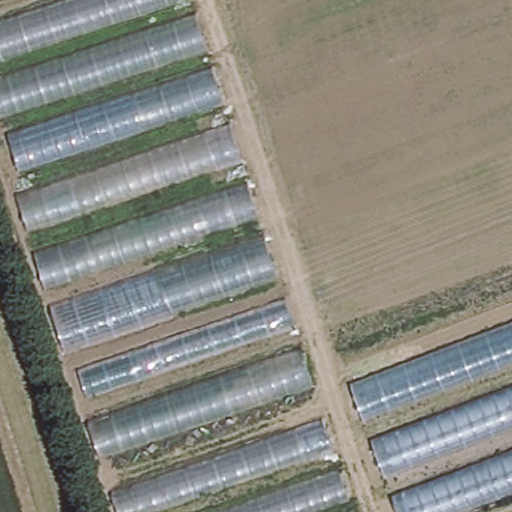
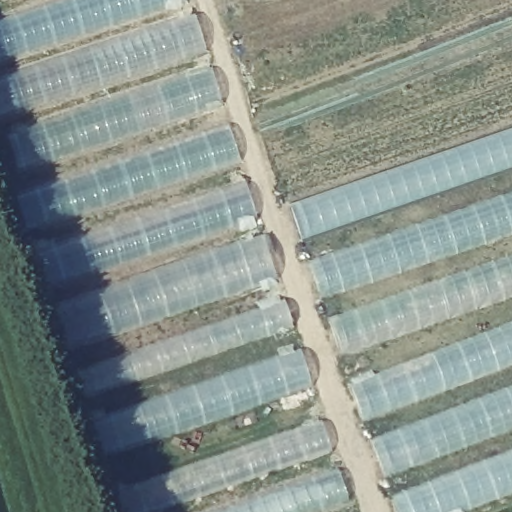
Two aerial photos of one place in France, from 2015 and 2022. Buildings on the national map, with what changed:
unchanged [(121,512),(0,128),(0,13),(0,11),(0,0),(189,0),(352,512),(121,512)]
new [(291,209),(512,136),(512,295),(342,355),(291,209)]
unchanged [(512,325),(512,489),(451,512),(398,512),(351,386),(512,325)]

